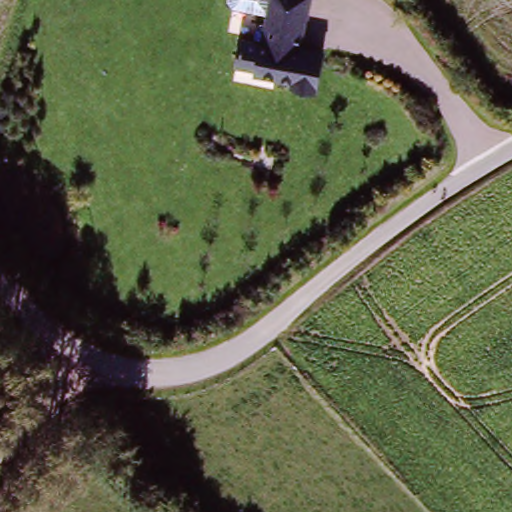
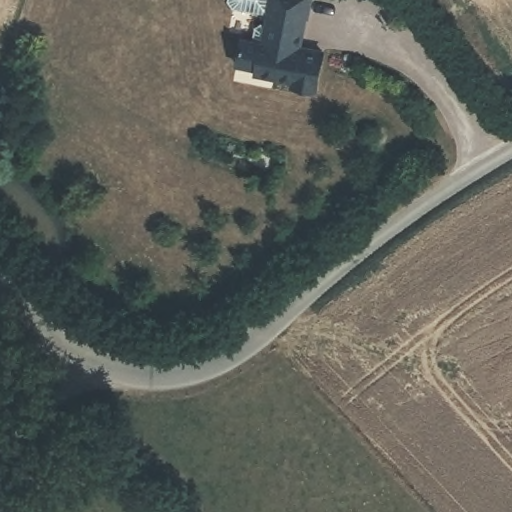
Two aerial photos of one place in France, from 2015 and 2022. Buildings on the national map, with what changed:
unchanged [(325,58),(320,85),(235,70),(240,45),(267,46),(271,19),(229,15),(231,0),(309,0),(302,54),(325,58)]

